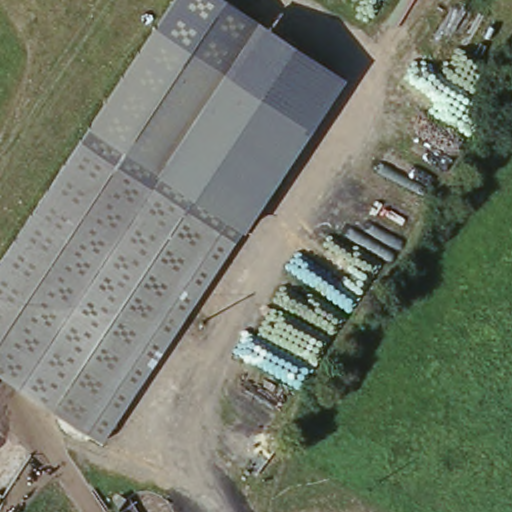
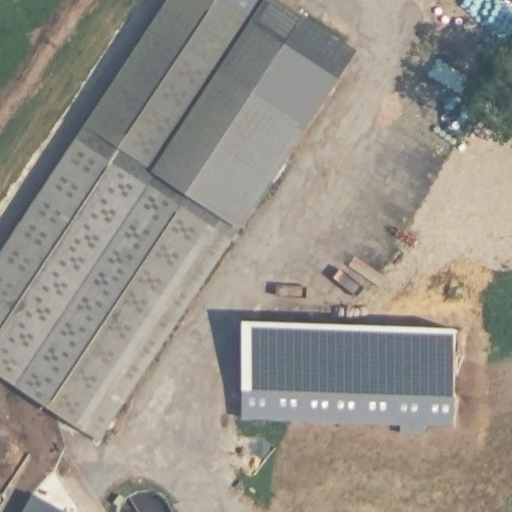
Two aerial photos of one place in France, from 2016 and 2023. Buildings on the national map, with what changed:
unchanged [(230,0),(348,80),(314,136),(154,36),(176,0),(230,0)]
unchanged [(314,136),(101,438),(0,372),(0,269),(154,36),(314,136)]
new [(459,332),(456,423),(308,418),(307,422),(303,422),(304,418),(244,415),(247,324),(459,332)]
new [(36,497),(62,512),(28,512),(36,497)]

